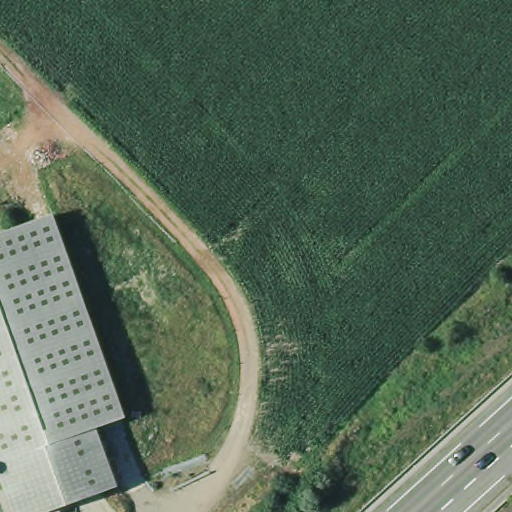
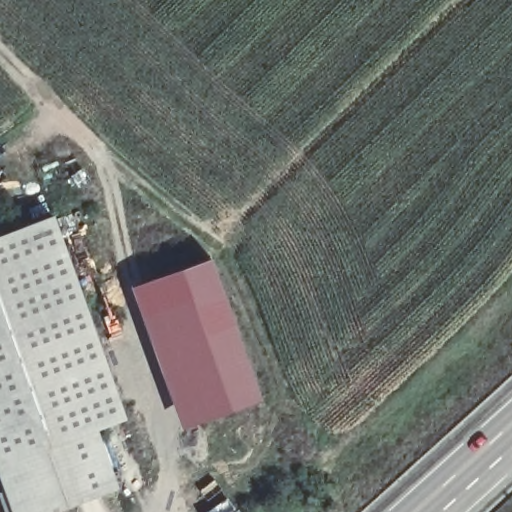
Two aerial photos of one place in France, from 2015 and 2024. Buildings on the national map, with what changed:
unchanged [(16,512),(0,469),(0,238),(32,226),(56,217),(60,226),(100,343),(127,417),(98,427),(99,428),(120,488),(52,512),(16,512)]
new [(210,255),(262,399),(180,426),(129,284),(210,255)]
new [(236,512),(203,512),(225,496),(236,512)]

